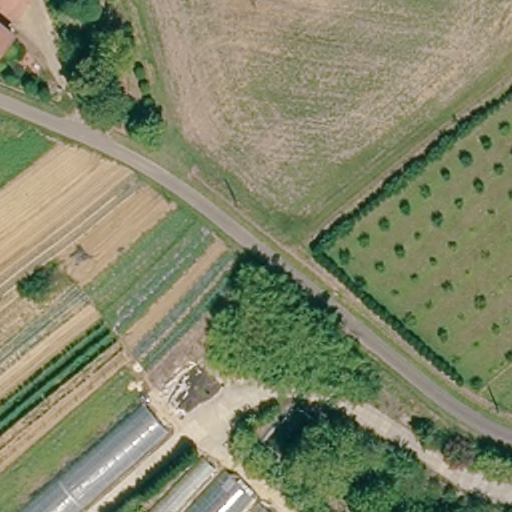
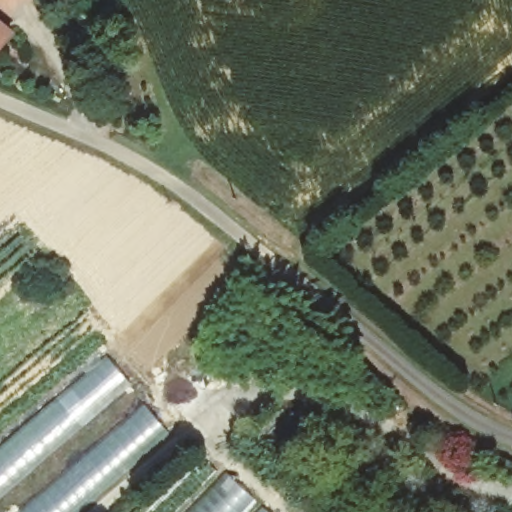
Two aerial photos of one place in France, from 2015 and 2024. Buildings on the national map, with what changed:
unchanged [(2,71),(0,69),(0,25),(24,43),(2,71)]
new [(0,445),(106,354),(132,385),(0,499),(0,445)]
unchanged [(171,436),(83,512),(23,512),(142,407),(171,436)]
new [(188,512),(226,472),(256,500),(245,512),(188,512)]
new [(268,512),(257,512),(262,506),(268,512)]

